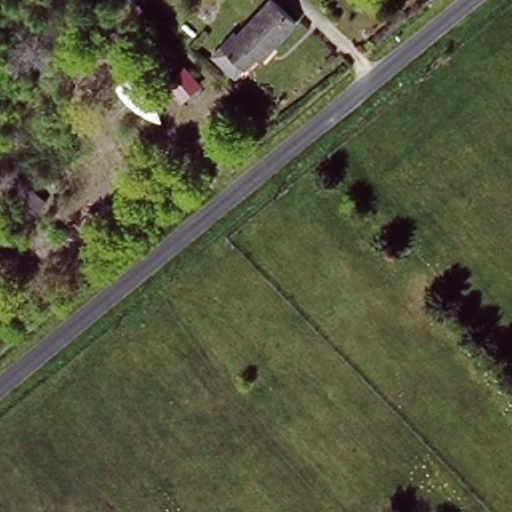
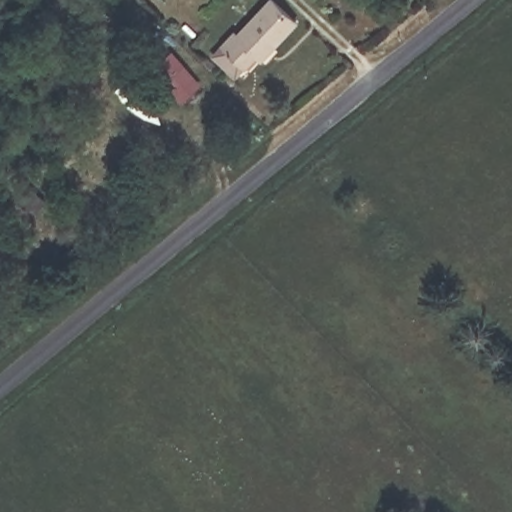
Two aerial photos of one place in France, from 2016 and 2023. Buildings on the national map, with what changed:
unchanged [(298,20),(265,59),(257,53),(226,77),(206,55),(262,0),(275,0),(298,20)]

